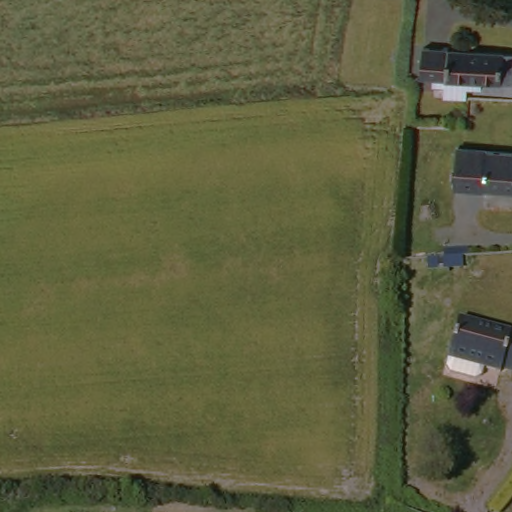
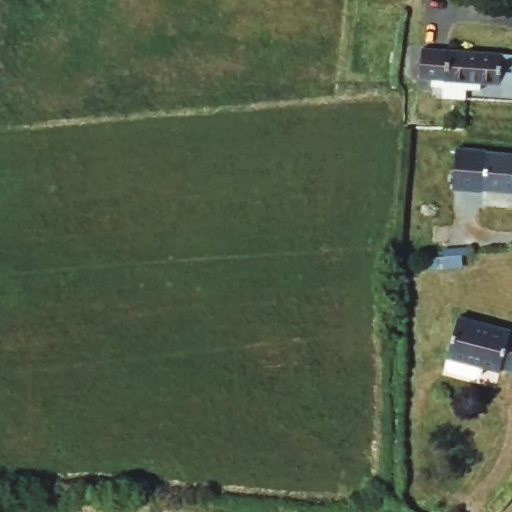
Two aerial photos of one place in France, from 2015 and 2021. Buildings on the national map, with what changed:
unchanged [(415,72),(419,49),(439,51),(511,59),(508,81),(479,79),(479,90),(463,89),(463,95),(433,91),(435,75),(415,72)]
unchanged [(463,155),(512,155),(512,199),(460,199),(449,199),(449,155),(463,155)]
unchanged [(470,372),(444,361),(462,308),(512,326),(512,372),(485,362),(481,372),(470,372)]

